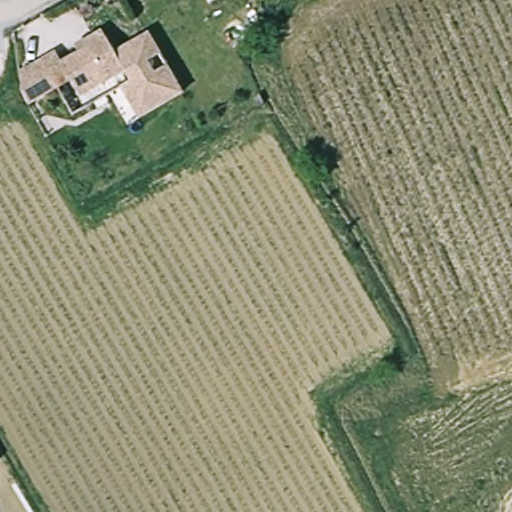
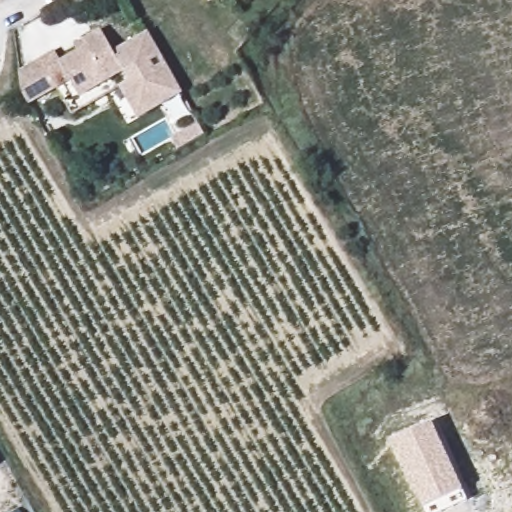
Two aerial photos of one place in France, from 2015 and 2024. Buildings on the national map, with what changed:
unchanged [(226,0),(212,9),(207,0),(226,0)]
unchanged [(23,72),(61,52),(68,64),(95,50),(92,42),(109,35),(121,59),(157,40),(167,61),(154,69),(160,81),(173,74),(187,101),(143,125),(127,92),(136,87),(130,76),(85,100),(76,82),(30,106),(23,72)]
new [(425,510),(394,442),(433,423),(465,492),(425,510)]

